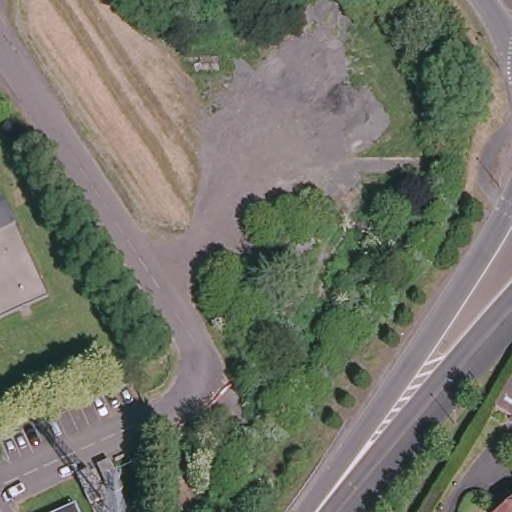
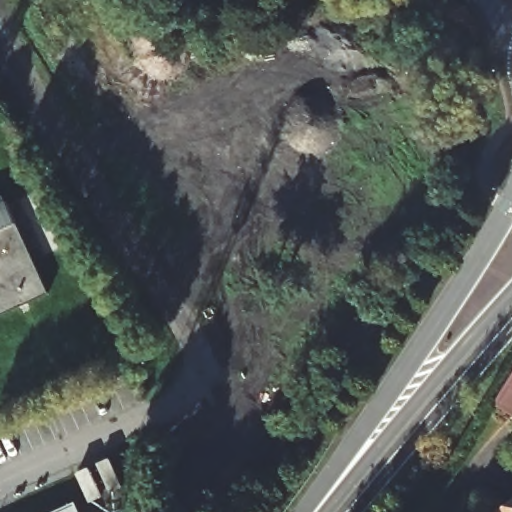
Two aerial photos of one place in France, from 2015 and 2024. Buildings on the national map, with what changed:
unchanged [(17,219),(0,226),(0,195),(3,194),(17,219)]
unchanged [(0,309),(0,226),(17,219),(49,288),(0,309)]
unchanged [(494,408),(512,377),(512,418),(494,408)]
unchanged [(113,461),(124,456),(136,485),(124,490),(113,461)]
unchanged [(91,470),(103,465),(115,494),(103,498),(91,470)]
unchanged [(75,506),(78,512),(61,512),(75,506)]
unchanged [(512,507),(512,512),(501,512),(512,507)]

